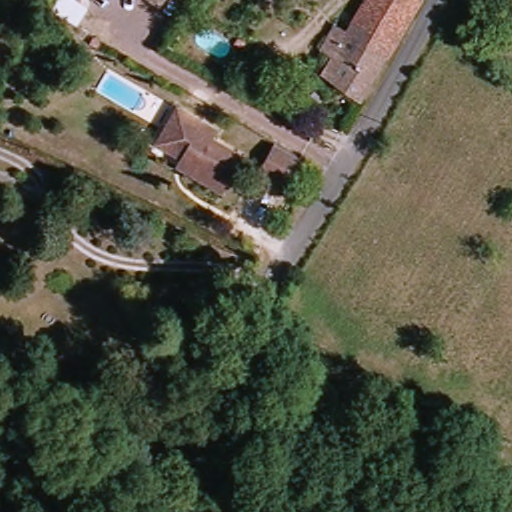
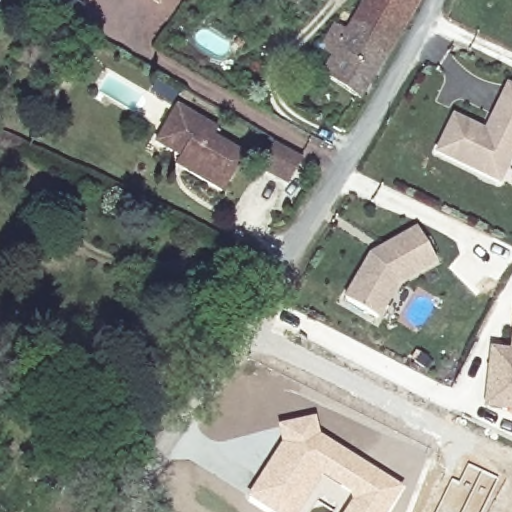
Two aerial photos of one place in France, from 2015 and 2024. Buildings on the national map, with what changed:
new [(54,0),(74,0),(85,7),(76,23),(49,7),(54,0)]
unchanged [(163,5),(160,9),(146,0),(166,0),(163,5)]
unchanged [(411,32),(372,100),(329,75),(341,56),(327,47),(342,25),(353,32),(372,0),(424,0),(428,2),(411,32)]
new [(482,132),(497,102),(505,86),(512,89),(512,149),(495,184),(433,152),(451,117),(482,132)]
unchanged [(168,167),(171,161),(172,159),(164,155),(163,155),(162,154),(151,149),(160,132),(170,111),(184,117),(212,132),(208,140),(236,154),(240,156),(221,194),(211,189),(204,185),(181,174),(168,167)]
unchanged [(279,156),(296,166),(282,191),(256,176),(270,151),(279,156)]
new [(372,250),(420,225),(437,258),(398,279),(376,313),(344,293),(372,250)]
new [(489,351),(509,353),(512,320),(512,409),(482,406),(489,351)]
new [(279,423),(315,416),(319,433),(339,446),(341,445),(403,489),(388,512),(340,512),(350,497),(322,478),(299,512),(269,512),(245,497),(280,442),(279,423)]

